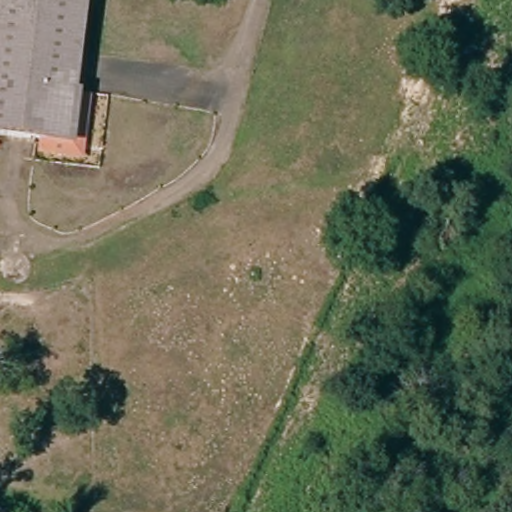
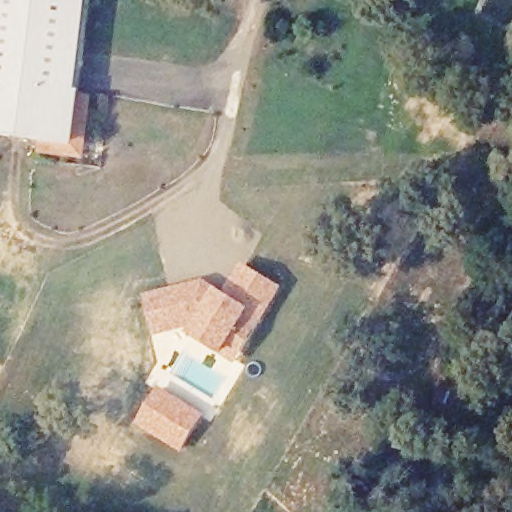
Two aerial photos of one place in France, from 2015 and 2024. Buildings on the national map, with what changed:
unchanged [(71,138),(47,136),(0,132),(0,0),(88,0),(77,95),(71,138)]
unchanged [(91,96),(84,150),(46,150),(47,136),(71,138),(77,95),(91,96)]
new [(217,289),(222,292),(242,263),(283,287),(234,364),(224,357),(187,336),(195,325),(155,337),(142,296),(205,280),(217,289)]
new [(157,385),(206,414),(181,453),(134,424),(157,385)]

